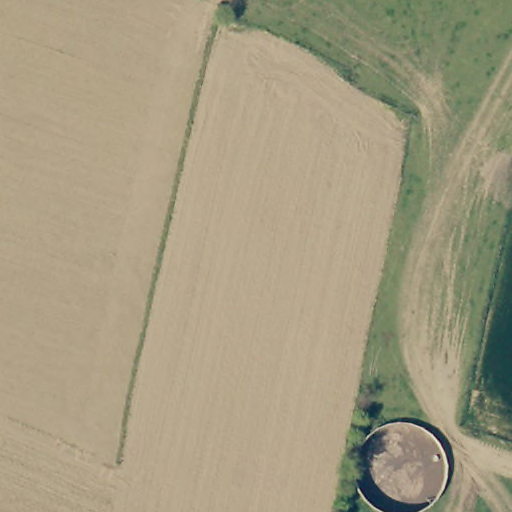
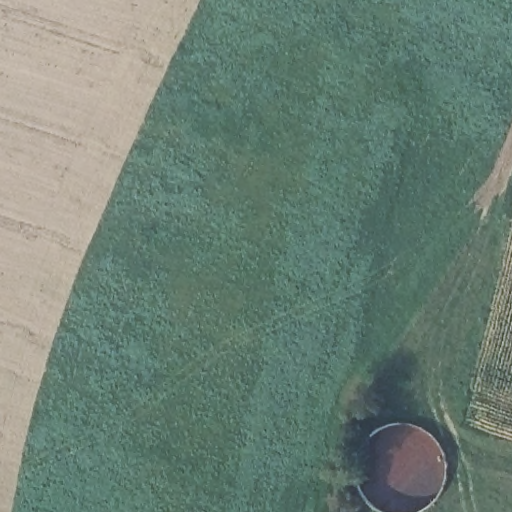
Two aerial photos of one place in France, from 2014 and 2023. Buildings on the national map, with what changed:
[]

